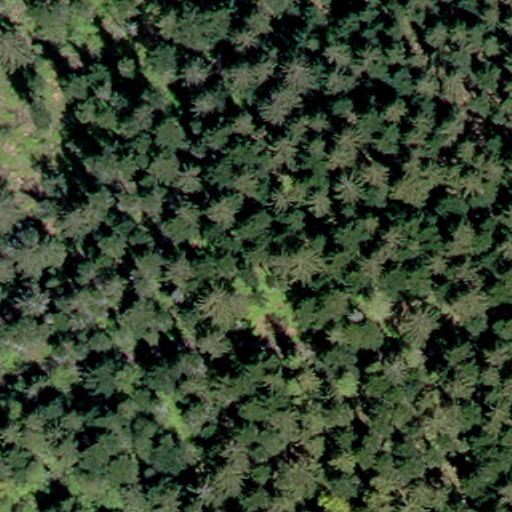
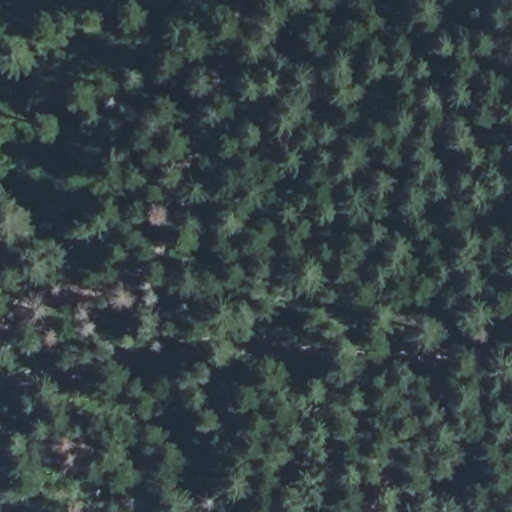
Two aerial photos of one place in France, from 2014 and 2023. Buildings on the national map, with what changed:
[]

